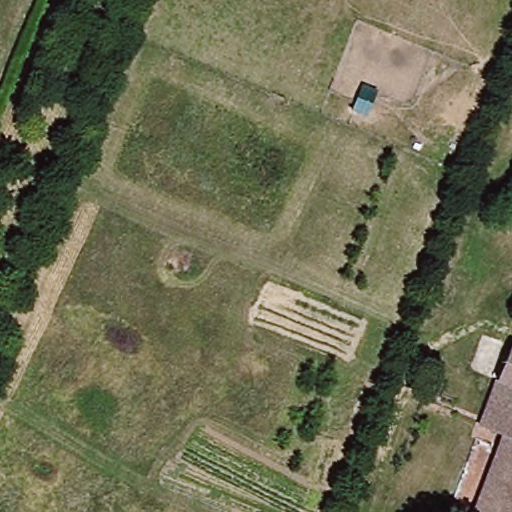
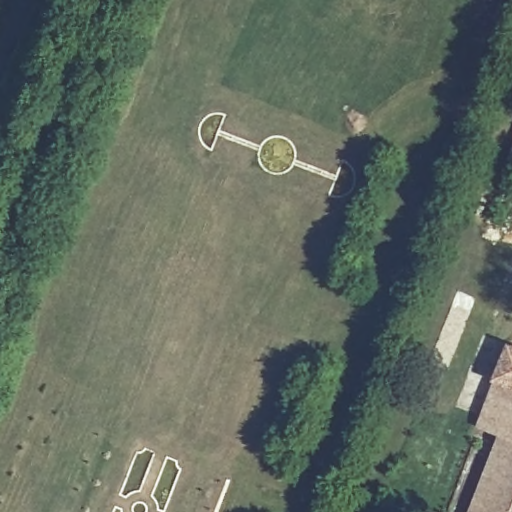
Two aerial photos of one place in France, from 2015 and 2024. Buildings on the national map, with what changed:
unchanged [(512,345),(512,388),(495,381),(510,344),(512,345)]
unchanged [(495,381),(512,388),(512,399),(498,431),(478,422),(495,381)]
unchanged [(445,419),(423,411),(419,408),(426,391),(431,393),(452,399),(445,419)]
unchanged [(512,399),(512,512),(465,512),(498,431),(512,399)]

